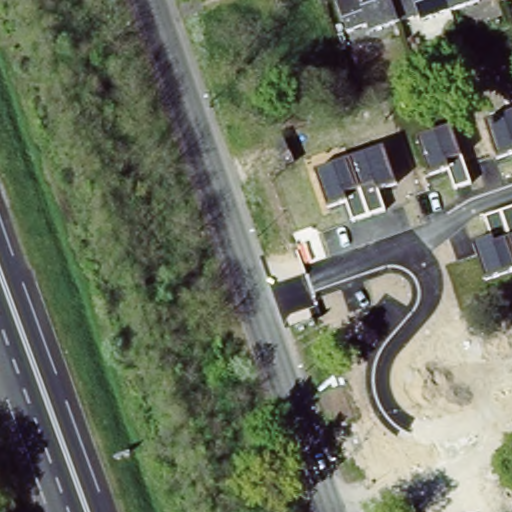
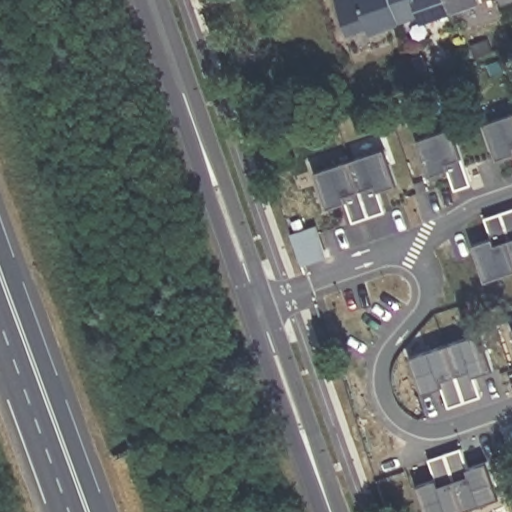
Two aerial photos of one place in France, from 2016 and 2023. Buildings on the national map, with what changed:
unchanged [(370,32),(348,40),(333,0),(389,0),(399,30),(372,40),(370,32)]
unchanged [(421,22),(399,30),(389,0),(444,0),(451,19),(423,29),(421,22)]
unchanged [(481,10),(451,19),(444,0),(484,0),(479,1),(481,10)]
unchanged [(503,0),(512,0),(512,4),(506,6),(503,0)]
unchanged [(512,112),(512,155),(497,161),(484,121),(512,112)]
unchanged [(453,128),(474,185),(457,191),(449,171),(429,177),(415,139),(453,128)]
unchanged [(386,148),(398,185),(378,191),(386,212),(354,223),(349,205),(326,210),(314,171),(386,148)]
unchanged [(484,283),(473,245),(491,240),(483,218),(512,207),(512,274),(484,283)]
new [(509,330),(512,329),(512,337),(509,330)]
new [(472,376),(479,395),(445,407),(438,387),(421,392),(409,356),(478,333),(489,369),(472,376)]
new [(452,512),(423,512),(414,485),(434,478),(427,458),(458,448),(465,467),(485,461),(497,497),(452,512)]

